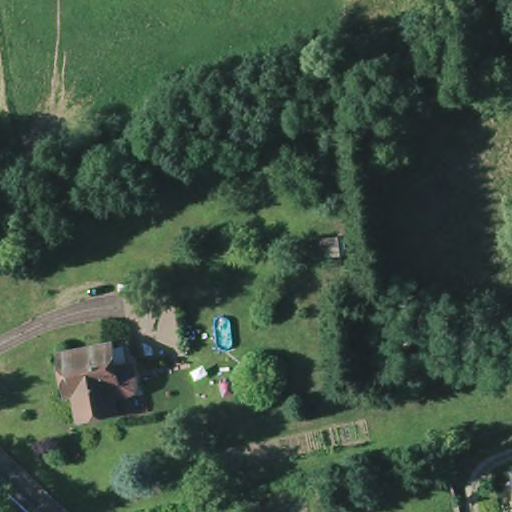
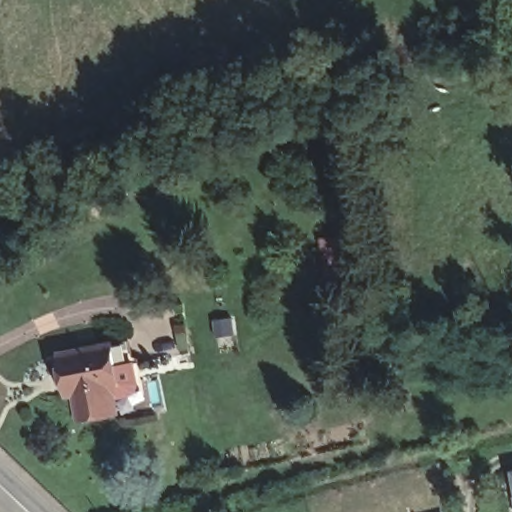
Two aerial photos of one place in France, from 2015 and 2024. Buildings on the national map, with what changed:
unchanged [(80,418),(79,410),(77,401),(75,391),(67,392),(64,374),(60,353),(112,343),(118,368),(122,383),(112,385),(115,398),(117,403),(118,411),(80,418)]

